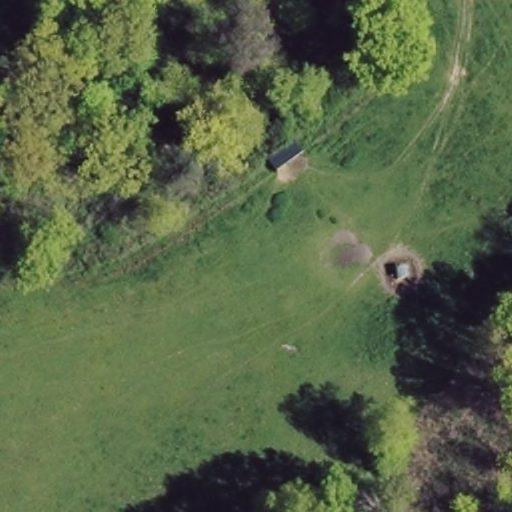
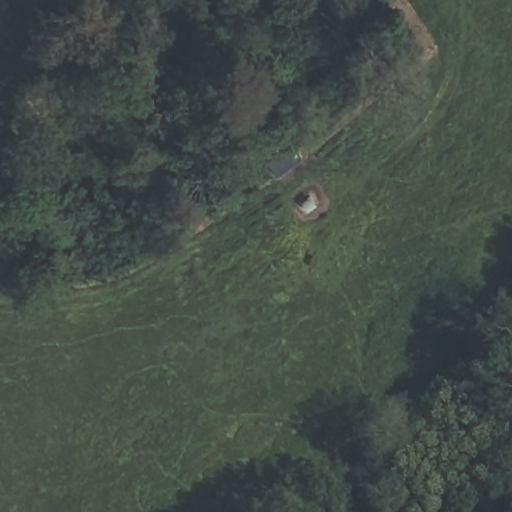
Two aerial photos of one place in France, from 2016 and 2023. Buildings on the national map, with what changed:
unchanged [(276,176),(265,160),(293,144),(305,159),(276,176)]

